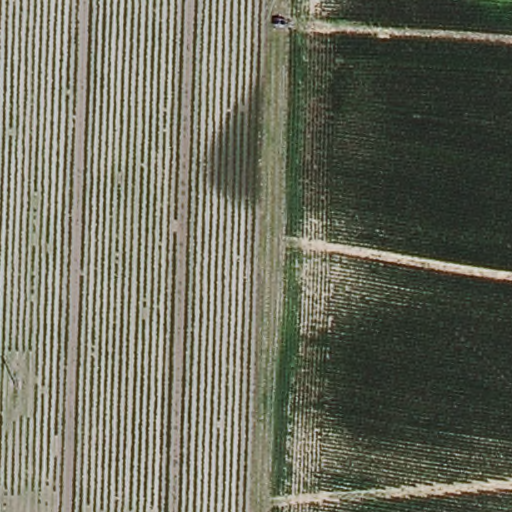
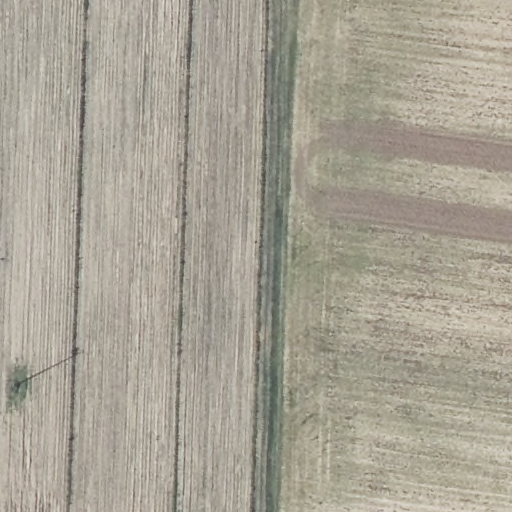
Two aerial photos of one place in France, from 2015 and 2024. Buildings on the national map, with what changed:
[]

